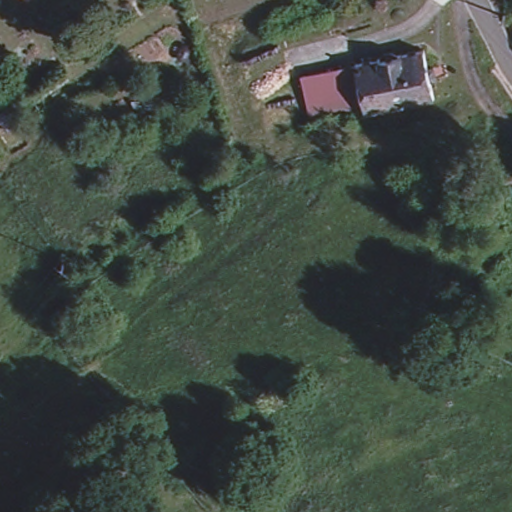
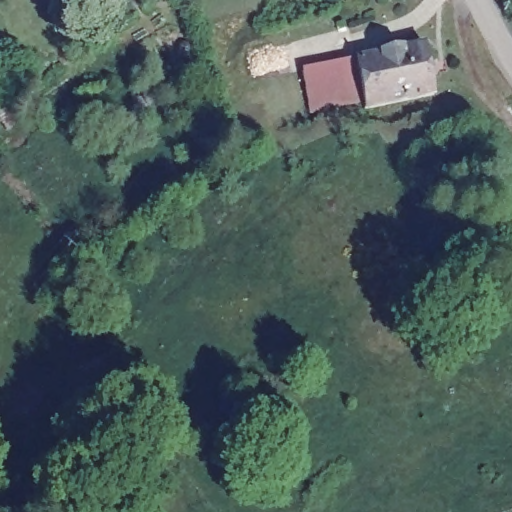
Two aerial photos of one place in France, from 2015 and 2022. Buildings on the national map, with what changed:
unchanged [(383,52),(386,47),(394,46),(400,49),(425,44),(435,93),(389,102),(379,53),(383,52)]
unchanged [(355,58),(379,53),(389,102),(365,107),(364,100),(356,61),(355,58)]
unchanged [(356,61),(364,100),(311,111),(302,71),(356,61)]

